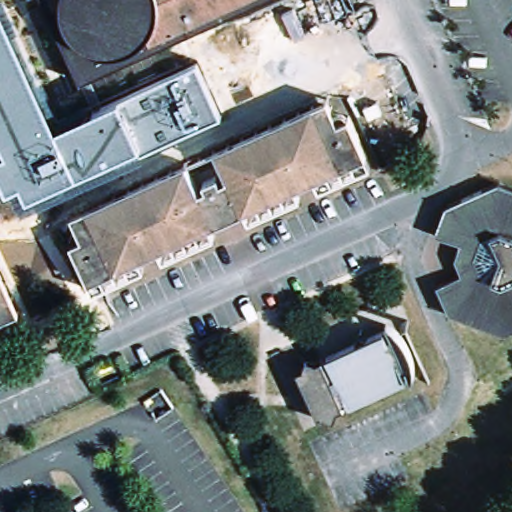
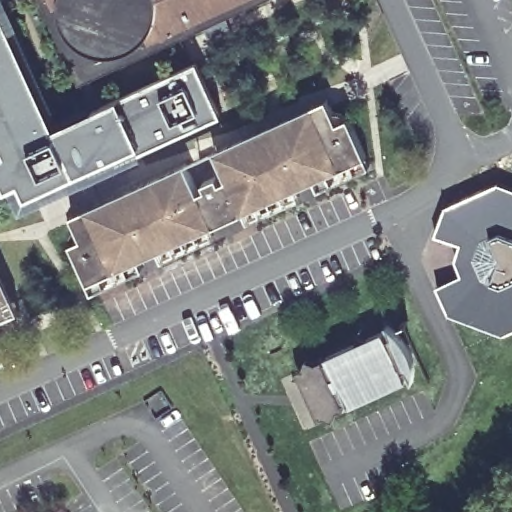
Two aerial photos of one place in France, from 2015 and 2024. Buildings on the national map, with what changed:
unchanged [(42,0),(274,0),(79,86),(42,0)]
unchanged [(119,95),(141,143),(28,197),(21,182),(8,188),(0,170),(0,152),(8,149),(3,139),(0,140),(0,3),(2,3),(58,124),(119,95)]
unchanged [(197,61),(219,109),(141,143),(119,95),(197,61)]
unchanged [(201,188),(209,185),(206,180),(216,175),(219,180),(228,177),(221,158),(277,134),(279,138),(294,133),(291,126),(334,109),(341,124),(349,120),(368,159),(89,284),(78,257),(73,245),(86,239),(77,223),(121,204),(123,209),(138,201),(136,196),(193,172),(201,188)]
unchanged [(504,188),(512,191),(512,331),(501,336),(487,329),(482,333),(451,320),(438,289),(464,278),(465,254),(440,240),(448,208),(504,188)]
unchanged [(0,322),(0,279),(15,314),(0,322)]
unchanged [(304,363),(311,367),(324,361),(386,333),(384,329),(389,329),(395,333),(401,338),(404,340),(406,344),(407,347),(409,349),(411,352),(412,354),(413,358),(413,366),(414,374),(415,379),(413,385),(409,383),(349,414),(337,419),(333,429),(323,426),(319,426),(297,377),(303,374),(304,363)]

